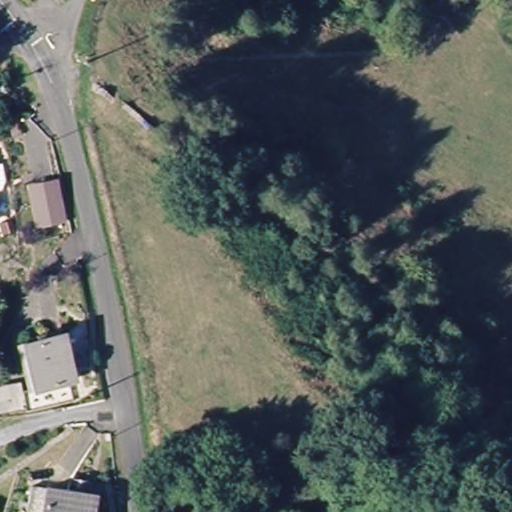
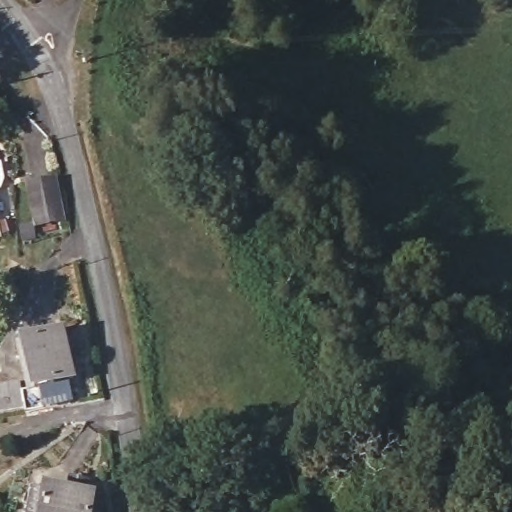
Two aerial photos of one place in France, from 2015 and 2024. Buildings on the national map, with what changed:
unchanged [(0,185),(0,174),(2,182),(0,185)]
unchanged [(37,189),(62,184),(71,223),(46,228),(37,189)]
unchanged [(0,408),(0,387),(27,381),(30,387),(40,384),(30,338),(69,332),(79,375),(76,376),(81,401),(29,411),(27,402),(0,408)]
unchanged [(38,512),(41,492),(78,496),(79,482),(94,483),(93,497),(107,498),(106,512),(38,512)]

